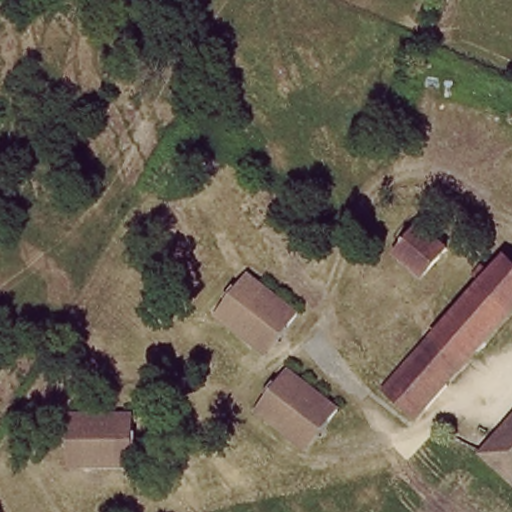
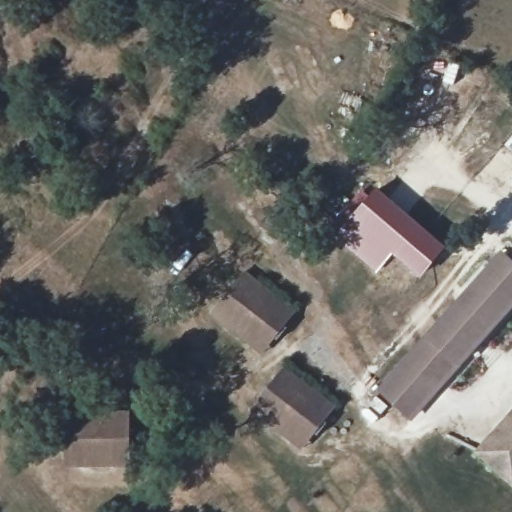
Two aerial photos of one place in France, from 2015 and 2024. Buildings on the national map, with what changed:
new [(338,232),(331,225),(361,190),(369,196),(377,189),(419,226),(394,253),(376,272),(335,237),(338,232)]
unchanged [(422,279),(394,253),(419,226),(447,251),(422,279)]
unchanged [(501,251),(512,261),(512,304),(412,416),(380,387),(496,257),(501,251)]
unchanged [(245,336),(223,316),(210,305),(230,282),(245,265),(290,305),(298,312),(282,330),(262,352),(245,336)]
unchanged [(288,437),(262,413),(252,404),(272,382),(287,367),(335,411),(320,429),(301,449),(288,437)]
unchanged [(111,463),(79,459),(59,456),(63,431),(67,403),(134,413),(130,440),(126,465),(111,463)]
unchanged [(512,412),(512,420),(508,416),(512,412)]
unchanged [(508,416),(512,420),(512,478),(479,448),(508,416)]

